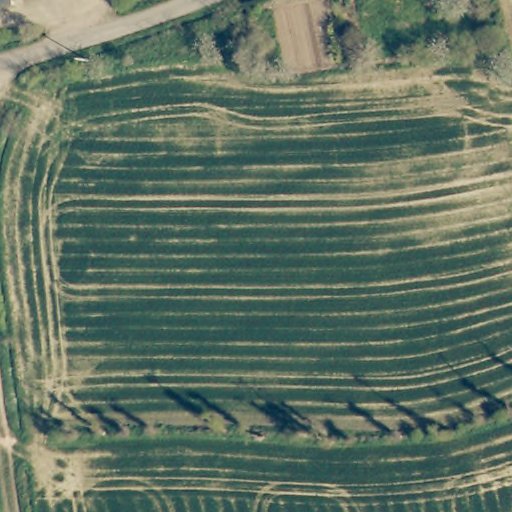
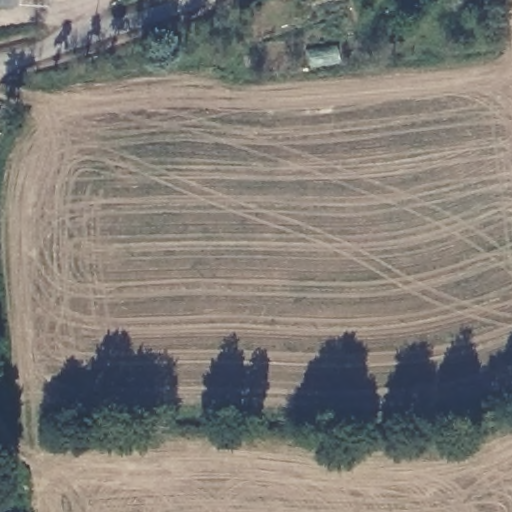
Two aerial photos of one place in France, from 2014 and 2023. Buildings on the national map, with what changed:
unchanged [(0,11),(0,0),(12,0),(12,11),(0,11)]

